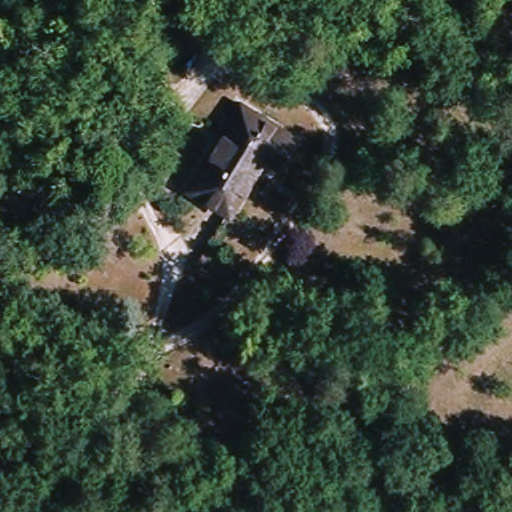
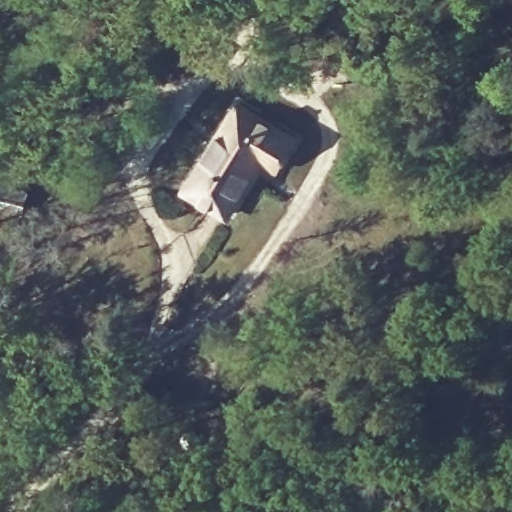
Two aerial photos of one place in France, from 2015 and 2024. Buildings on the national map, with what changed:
unchanged [(183,187),(240,108),(292,144),(272,172),(261,163),(224,216),(183,187)]

